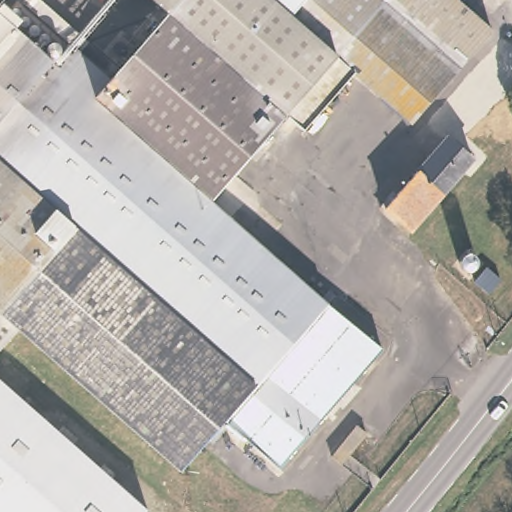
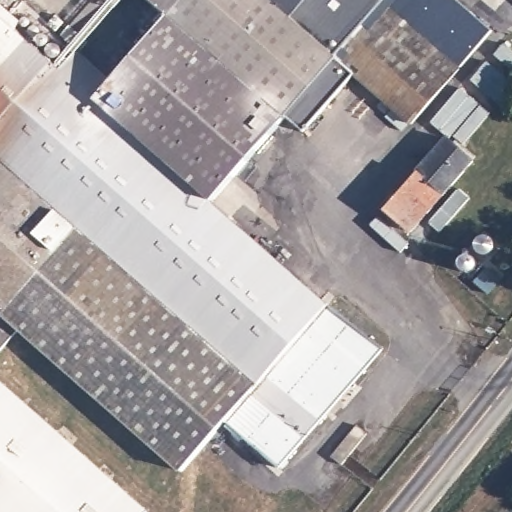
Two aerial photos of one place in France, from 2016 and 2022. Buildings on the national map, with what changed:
unchanged [(51,360),(15,327),(0,344),(0,14),(57,65),(93,95),(110,76),(169,10),(157,0),(380,0),(383,2),(384,0),(457,0),(491,31),(409,123),(351,72),(301,127),(284,112),(206,198),(321,301),(379,353),(275,470),(221,422),(187,460),(177,470),(160,455),(51,360)]
unchanged [(380,0),(384,0),(383,2),(380,0)]
unchanged [(75,45),(110,76),(93,95),(57,65),(75,45)]
unchanged [(471,156),(409,226),(383,204),(444,133),(471,156)]
unchanged [(498,286),(486,300),(472,287),(484,275),(498,286)]
unchanged [(129,492),(146,507),(142,512),(0,512),(0,380),(18,396),(129,492)]

